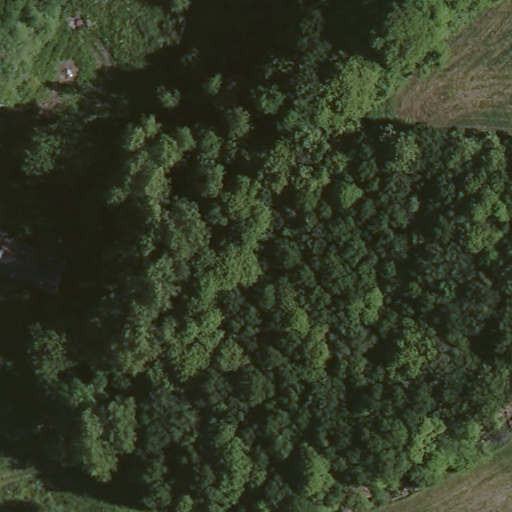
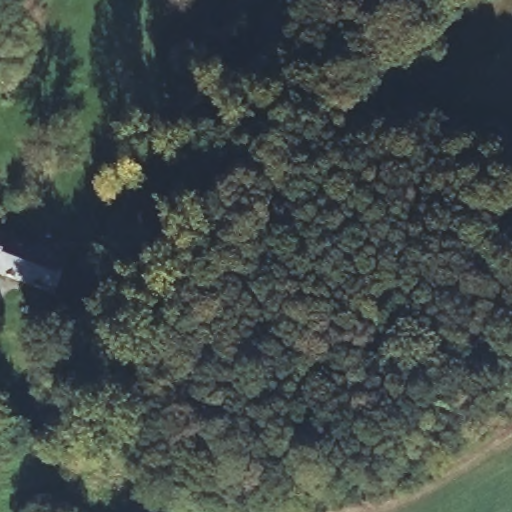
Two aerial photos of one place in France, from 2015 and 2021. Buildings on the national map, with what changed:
unchanged [(52,257),(38,290),(0,275),(0,238),(52,257)]

